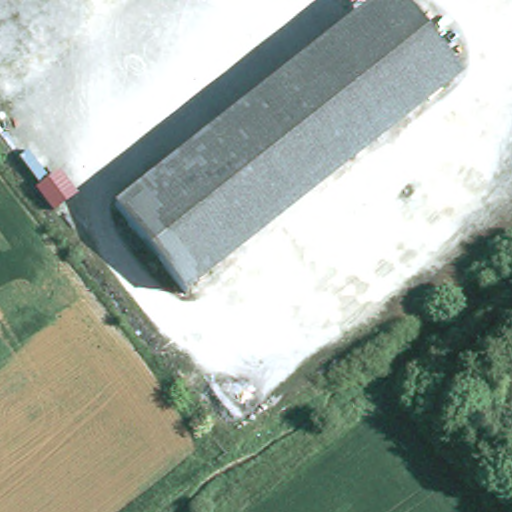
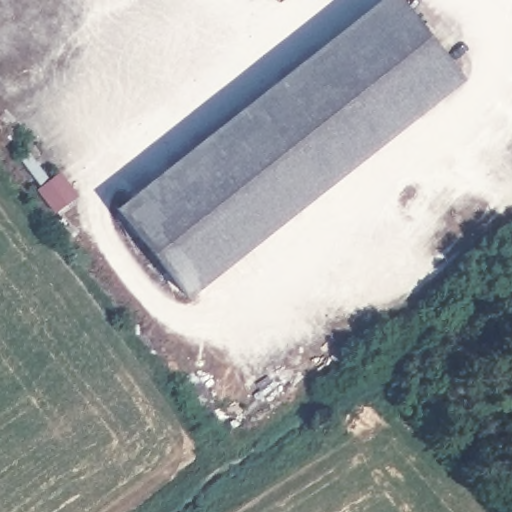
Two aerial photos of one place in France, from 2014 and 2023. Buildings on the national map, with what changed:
unchanged [(398,0),(465,84),(188,303),(117,213),(228,124),(385,0),(398,0)]

